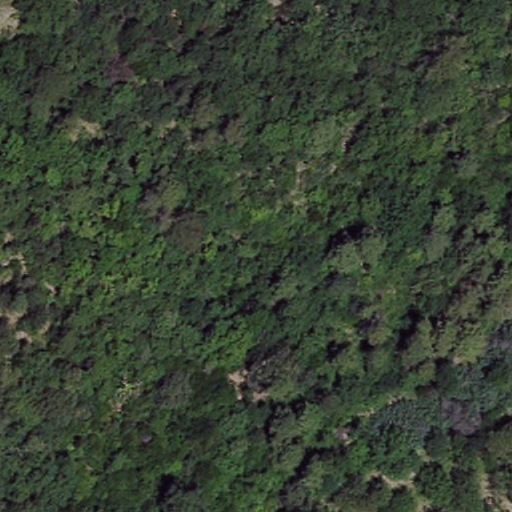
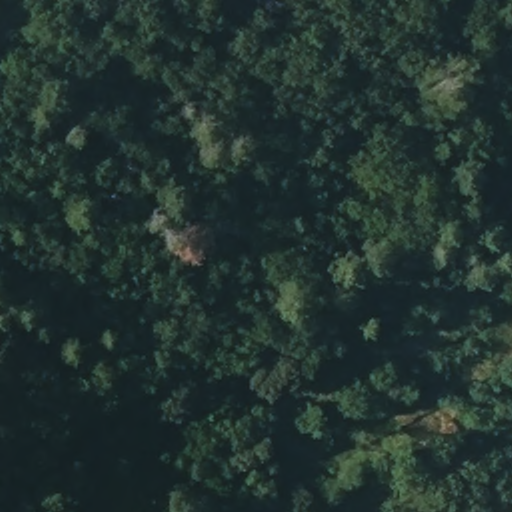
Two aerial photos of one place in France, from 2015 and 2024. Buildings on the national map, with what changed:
unchanged [(455,382),(472,375),(477,388),(461,395),(455,382)]

